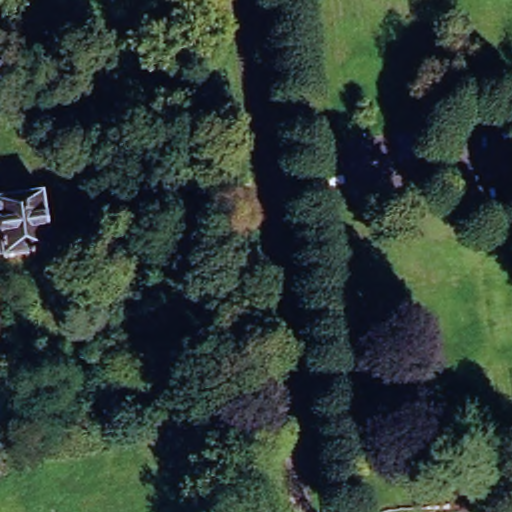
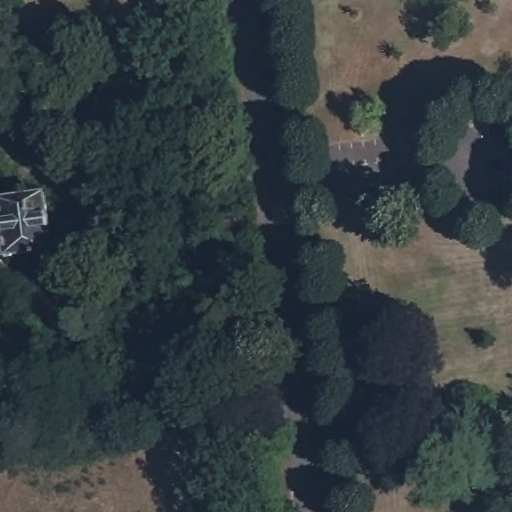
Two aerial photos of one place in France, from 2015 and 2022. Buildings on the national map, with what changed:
unchanged [(0,249),(0,202),(42,196),(50,255),(2,262),(0,249)]

